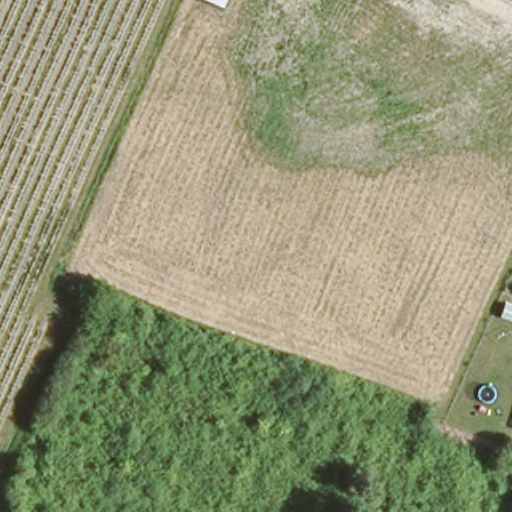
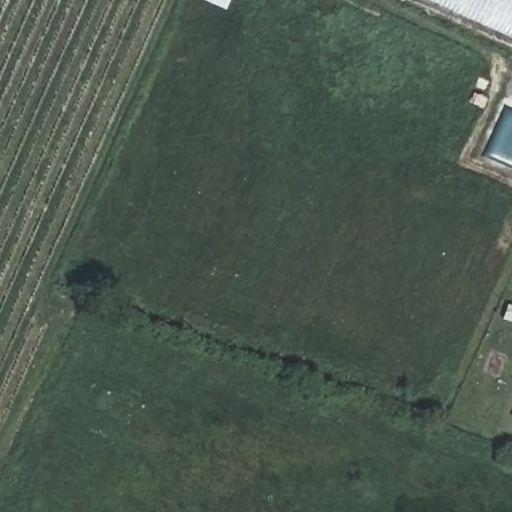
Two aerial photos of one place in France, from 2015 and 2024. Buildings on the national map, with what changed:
new [(433,0),(512,0),(512,41),(433,0)]

